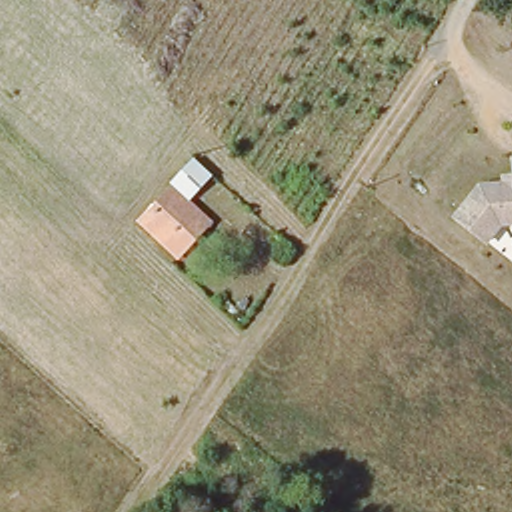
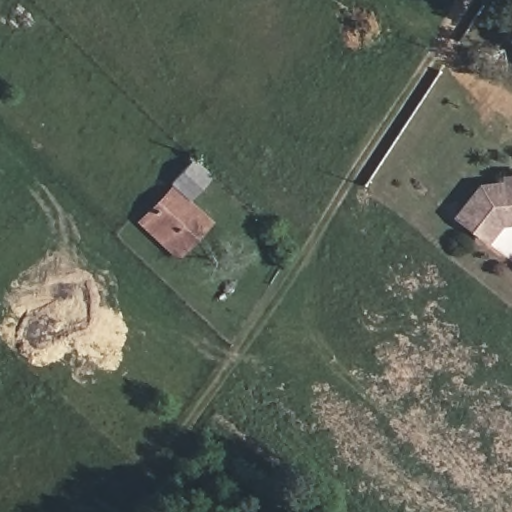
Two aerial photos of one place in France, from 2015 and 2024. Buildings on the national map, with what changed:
unchanged [(136,228),(170,190),(169,188),(190,163),(209,180),(189,204),(211,227),(175,263),(136,228)]
unchanged [(501,215),(480,243),(450,218),(484,175),(497,186),(506,185),(512,177),(512,214),(501,215)]

